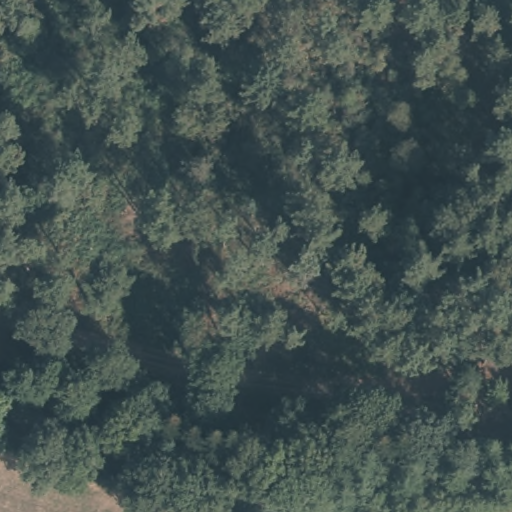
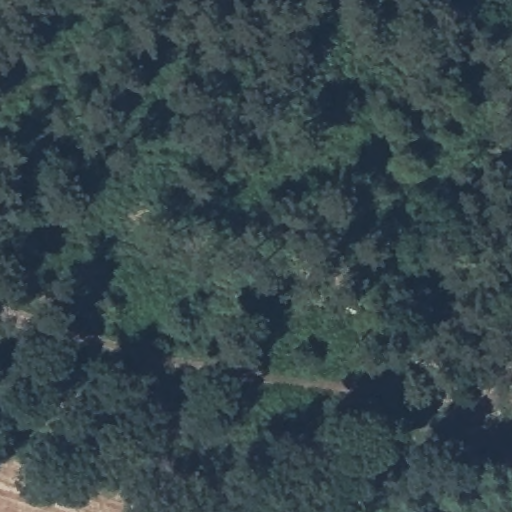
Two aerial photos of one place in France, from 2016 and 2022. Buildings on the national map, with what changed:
[]

